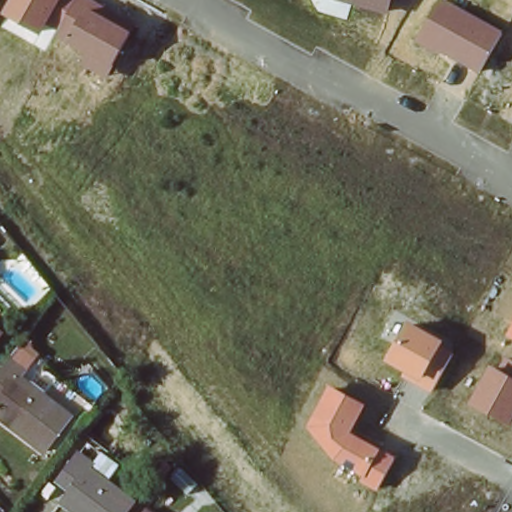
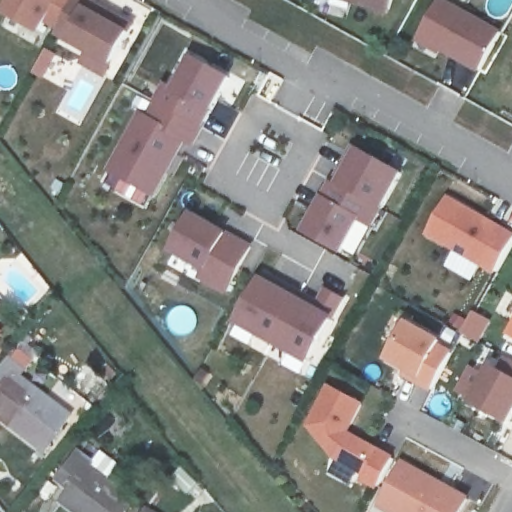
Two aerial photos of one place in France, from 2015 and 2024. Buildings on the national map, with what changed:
unchanged [(108,79),(80,64),(87,54),(70,42),(57,37),(62,29),(49,21),(40,36),(2,14),(10,0),(97,0),(108,6),(103,15),(134,32),(108,79)]
unchanged [(388,16),(330,0),(393,0),(388,16)]
unchanged [(502,32),(479,73),(440,50),(439,54),(416,40),(441,0),(446,0),(502,32)]
new [(138,109),(147,114),(155,99),(157,102),(167,81),(175,86),(193,54),(234,76),(213,113),(205,130),(202,129),(194,147),(183,141),(154,197),(107,171),(138,109)]
new [(323,195),(332,180),(338,183),(357,146),(406,172),(376,231),(362,223),(343,256),(303,234),(323,195)]
unchanged [(443,198),(481,219),(479,223),(495,232),(497,229),(511,236),(492,271),(423,233),(443,198)]
new [(229,231),(227,235),(254,245),(225,296),(196,280),(198,269),(167,253),(189,213),(229,231)]
new [(311,303),(324,288),(347,300),(333,316),(335,318),(310,366),(233,325),(259,278),(311,303)]
unchanged [(443,339),(455,348),(432,393),(401,375),(405,370),(387,361),(409,321),(443,339)]
unchanged [(512,327),(512,337),(508,334),(512,327)]
unchanged [(41,450),(0,419),(0,367),(12,351),(25,360),(15,372),(68,413),(41,450)]
unchanged [(471,404),(492,364),(500,368),(505,356),(512,360),(512,422),(511,424),(471,404)]
unchanged [(351,431),(396,454),(379,491),(360,482),(362,476),(332,460),(307,427),(329,383),(367,404),(351,431)]
unchanged [(70,512),(57,502),(70,484),(60,476),(83,445),(94,454),(86,465),(129,500),(121,512),(70,512)]
unchanged [(461,499),(454,512),(385,512),(374,506),(397,463),(461,499)]
unchanged [(155,512),(145,512),(148,507),(155,512)]

